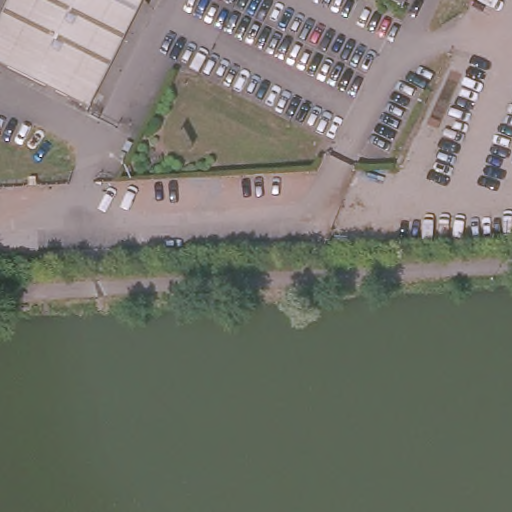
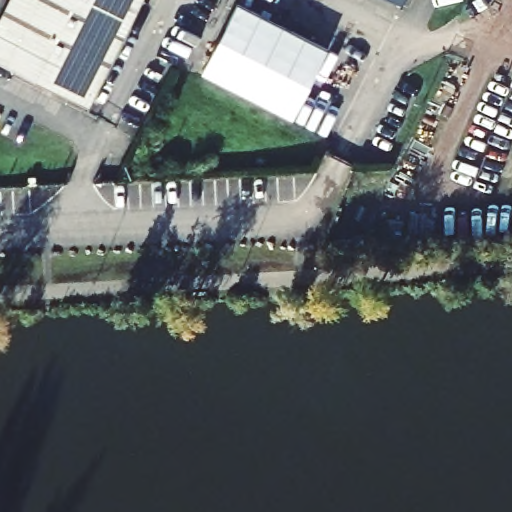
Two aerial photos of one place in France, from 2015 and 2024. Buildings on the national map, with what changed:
unchanged [(0,66),(0,18),(9,0),(139,0),(83,109),(0,66)]
new [(292,121),(202,75),(236,6),(327,52),(292,121)]

